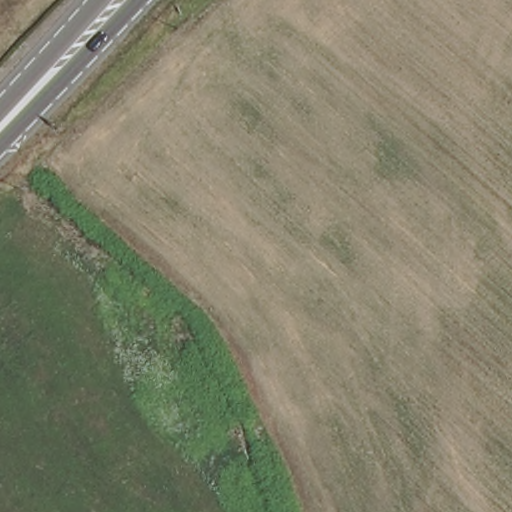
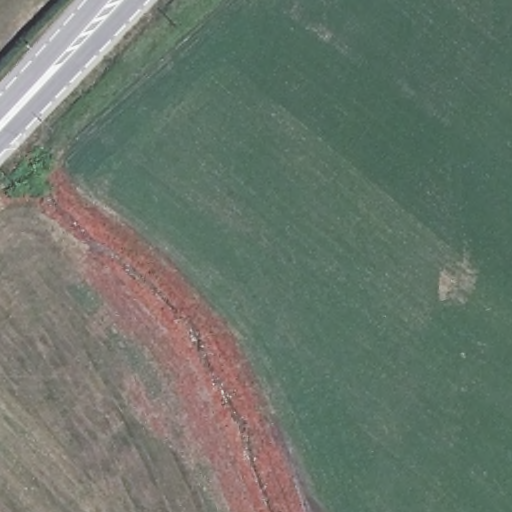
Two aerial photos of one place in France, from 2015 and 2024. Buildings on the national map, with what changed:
[]

